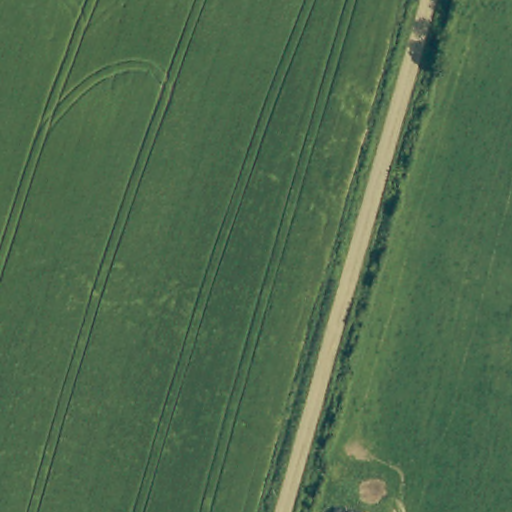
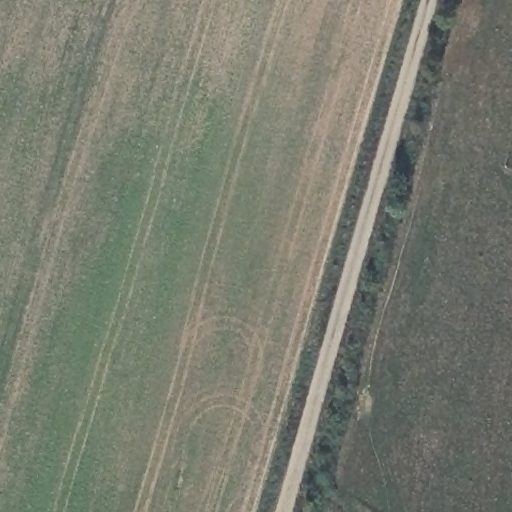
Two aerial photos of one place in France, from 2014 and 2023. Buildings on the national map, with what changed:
[]

